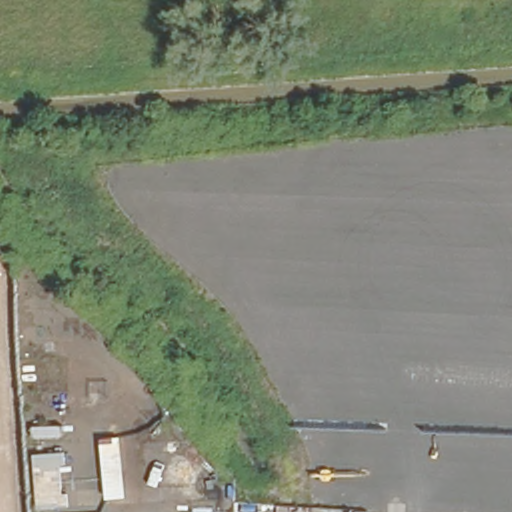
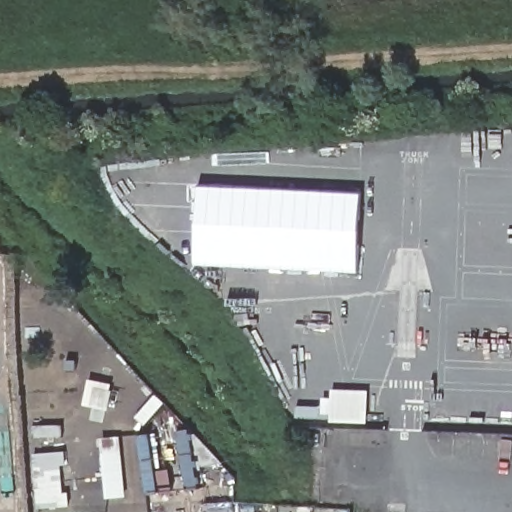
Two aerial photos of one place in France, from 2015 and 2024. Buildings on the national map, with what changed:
new [(358,270),(195,262),(199,186),(361,194),(358,270)]
new [(331,389),(369,391),(367,423),(296,419),(297,405),(322,406),(322,398),(330,398),(331,389)]
new [(31,455),(61,452),(68,507),(38,510),(31,455)]

